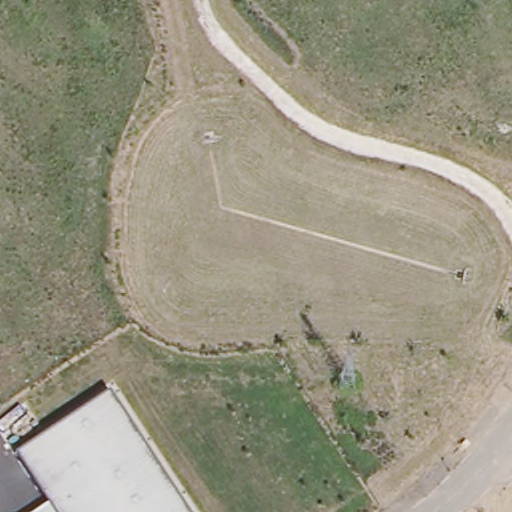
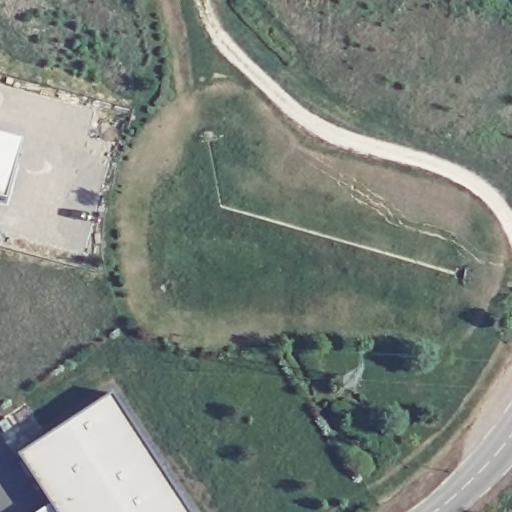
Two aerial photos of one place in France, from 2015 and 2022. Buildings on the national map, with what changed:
new [(7,203),(0,200),(0,132),(24,138),(7,203)]
unchanged [(17,457),(111,394),(187,512),(39,512),(50,506),(17,457)]

